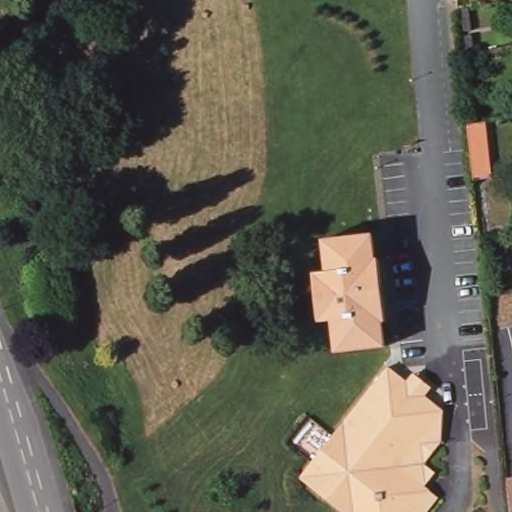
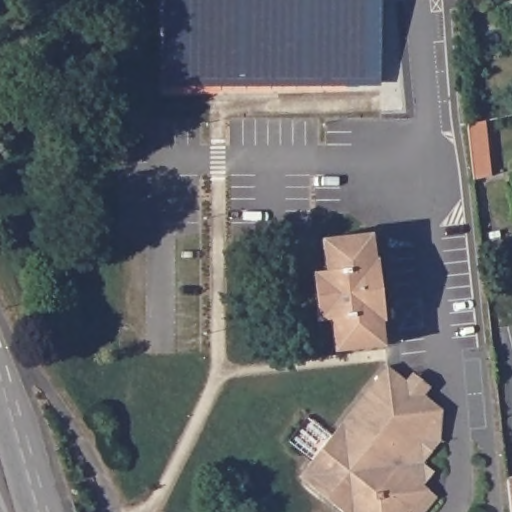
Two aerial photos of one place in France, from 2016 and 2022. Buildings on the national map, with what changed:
new [(164,0),(382,0),(381,86),(164,85),(164,0)]
unchanged [(484,125),(491,180),(475,183),(468,129),(484,125)]
unchanged [(339,353),(335,320),(324,321),(319,272),(331,270),(327,239),(379,234),(379,238),(382,258),(384,258),(390,320),(388,321),(390,342),(390,347),(339,353)]
unchanged [(497,292),(498,292),(501,317),(490,317),(488,294),(497,292)]
unchanged [(393,365),(411,381),(419,372),(435,387),(428,396),(447,412),(445,440),(428,463),(438,472),(428,485),(441,496),(428,512),(347,512),(315,485),(304,476),(311,467),(393,365)]

